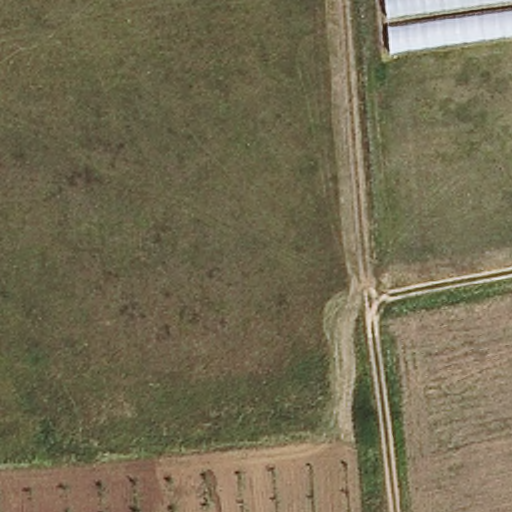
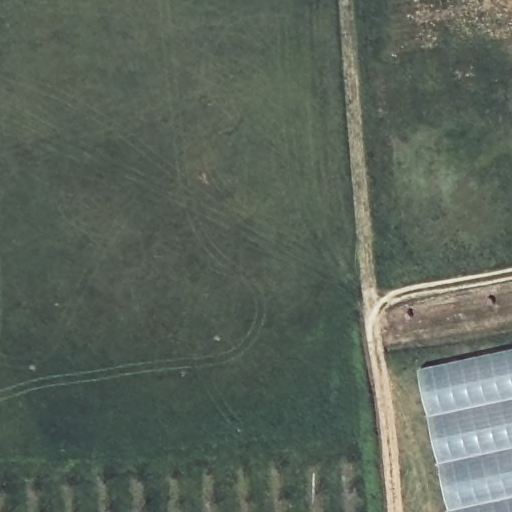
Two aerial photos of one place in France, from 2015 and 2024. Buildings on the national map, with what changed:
unchanged [(394,50),(389,0),(512,0),(512,37),(394,50)]
new [(512,350),(512,512),(450,512),(419,370),(512,350)]

